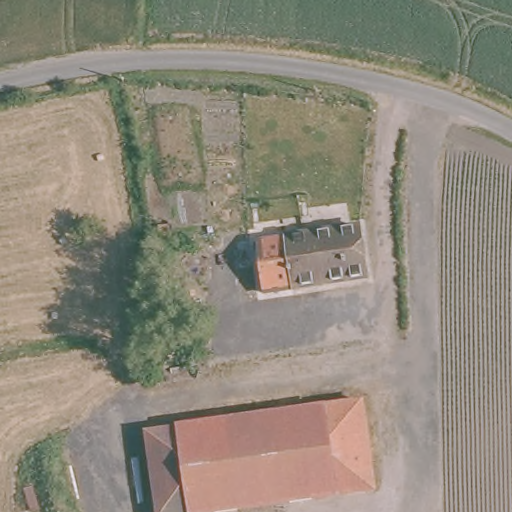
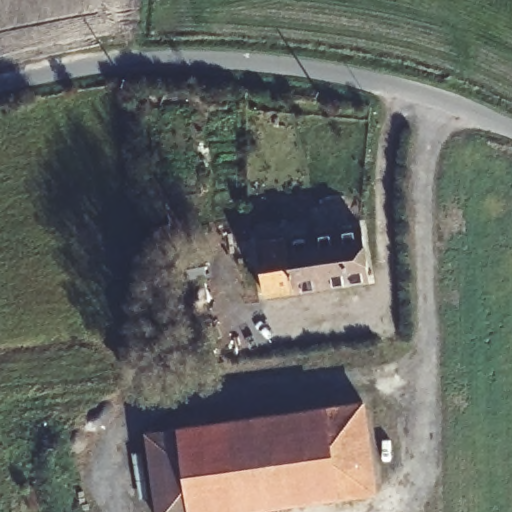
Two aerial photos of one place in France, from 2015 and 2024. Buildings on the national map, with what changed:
unchanged [(186,276),(201,272),(202,261),(212,259),(209,248),(234,244),(234,240),(258,236),(260,245),(358,231),(365,279),(192,305),(186,276)]
unchanged [(368,489),(213,512),(154,512),(143,430),(356,404),(368,489)]

